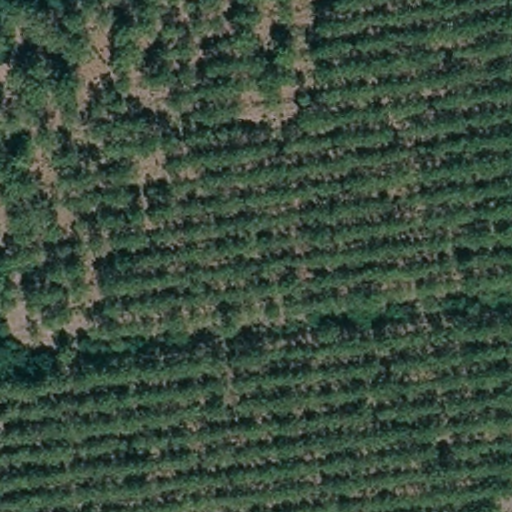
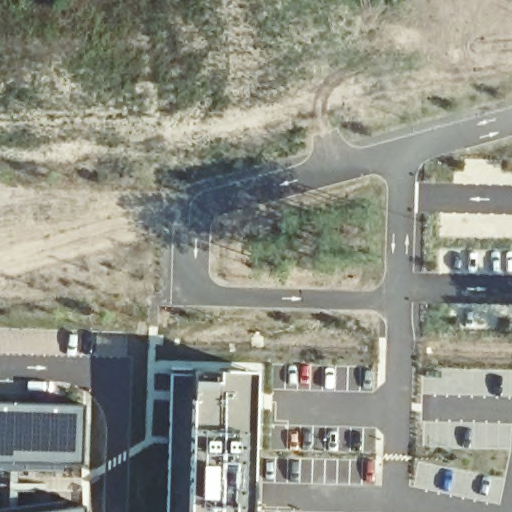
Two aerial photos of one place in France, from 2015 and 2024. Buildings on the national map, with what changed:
new [(164,414),(163,410),(159,426),(149,425),(148,360),(195,361),(256,368),(251,512),(165,512),(167,441),(164,414)]
new [(84,465),(65,466),(65,469),(6,470),(0,470),(0,399),(85,402),(84,465)]
new [(84,502),(85,512),(0,512),(0,508),(36,503),(84,502)]

